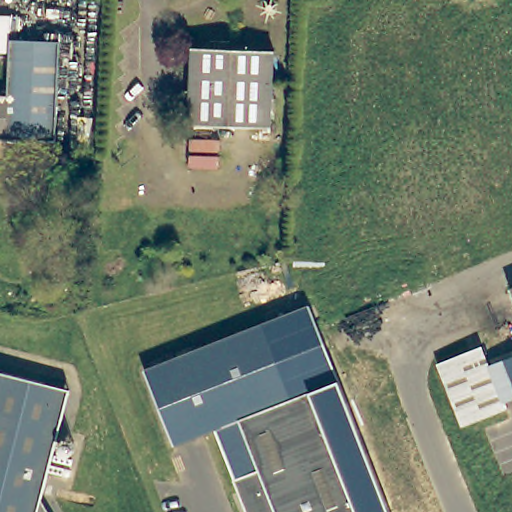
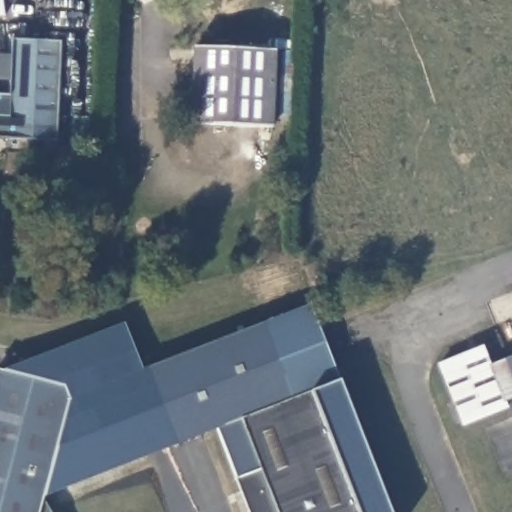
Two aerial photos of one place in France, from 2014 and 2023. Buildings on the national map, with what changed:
unchanged [(13,91),(16,37),(62,38),(60,141),(0,139),(0,90),(13,91)]
unchanged [(272,50),(271,124),(192,123),(194,49),(272,50)]
unchanged [(293,400),(263,325),(309,307),(339,382),(389,512),(358,512),(311,393),(293,400)]
new [(53,386),(2,372),(125,324),(145,371),(175,447),(40,497),(36,512),(0,512),(0,372),(53,386)]
unchanged [(358,512),(248,512),(216,431),(175,447),(145,371),(263,325),(293,400),(311,393),(358,512)]
unchanged [(511,409),(466,427),(441,364),(487,346),(495,367),(512,360),(512,400),(508,402),(511,409)]
demolished [(0,512),(0,372),(53,386),(47,411),(61,414),(36,512),(0,512)]

